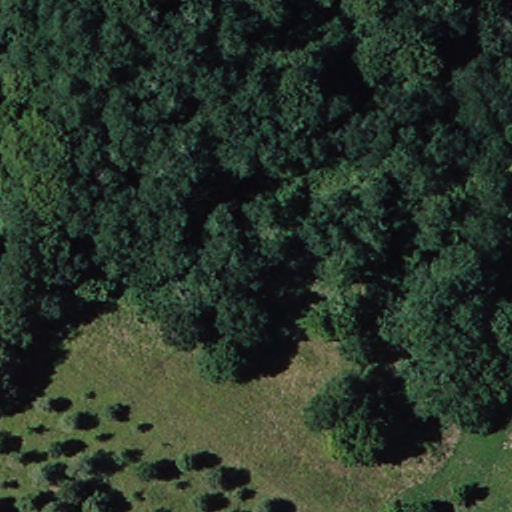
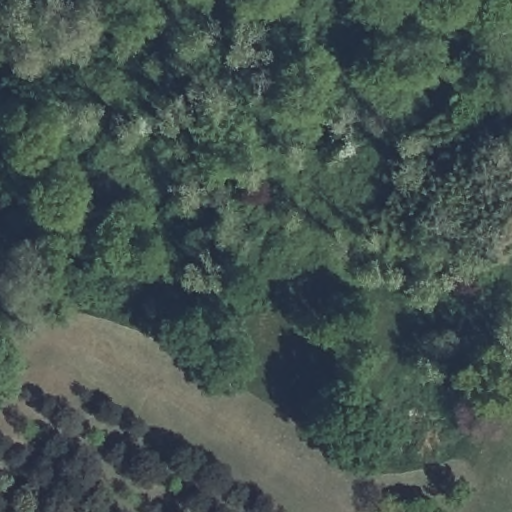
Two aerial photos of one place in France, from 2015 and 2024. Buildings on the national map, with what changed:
[]

